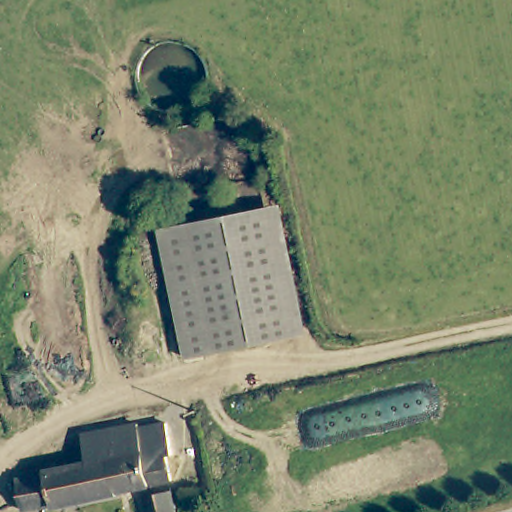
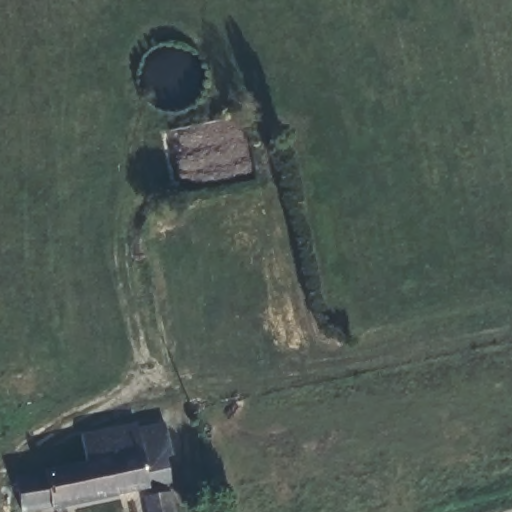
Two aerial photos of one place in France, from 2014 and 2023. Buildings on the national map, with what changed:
demolished [(171,231),(275,209),(301,337),(197,358),(171,231)]
unchanged [(163,422),(170,453),(164,455),(170,482),(53,510),(52,506),(24,512),(16,481),(46,473),(46,472),(88,462),(82,437),(134,425),(135,429),(163,422)]
unchanged [(147,512),(145,498),(171,493),(175,512),(147,512)]

